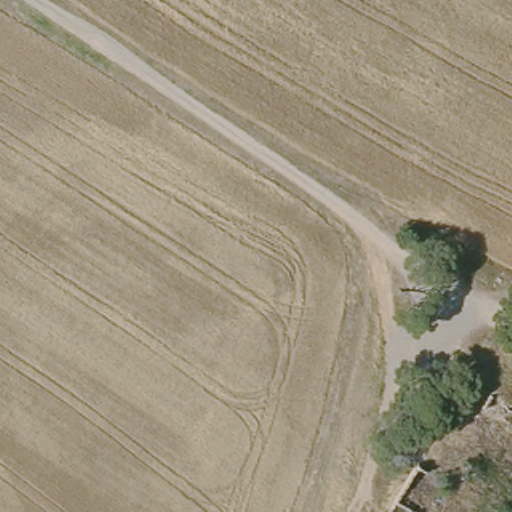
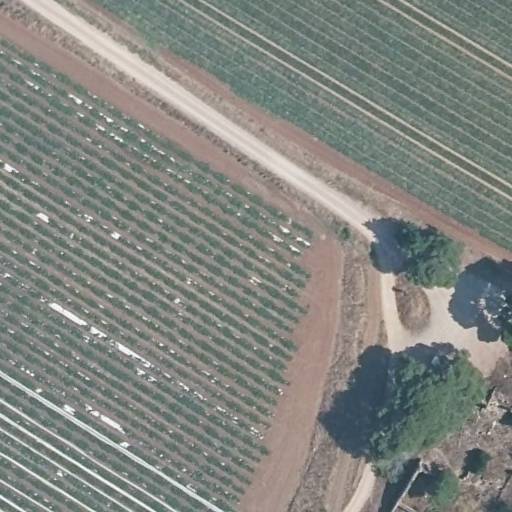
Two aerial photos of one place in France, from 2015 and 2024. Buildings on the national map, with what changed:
unchanged [(492,396),(512,408),(512,424),(484,408),(492,396)]
unchanged [(413,512),(393,512),(399,503),(413,512)]

